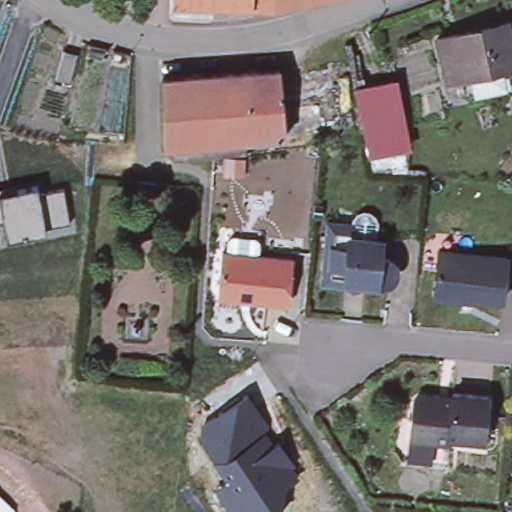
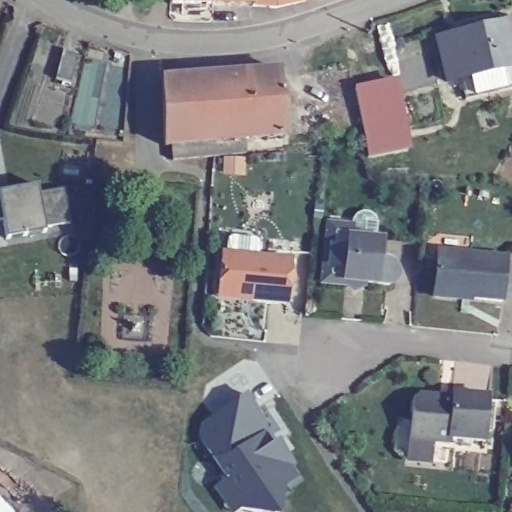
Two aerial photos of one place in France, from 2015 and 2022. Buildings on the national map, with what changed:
unchanged [(252,10),(228,9),(211,8),(188,8),(169,7),(169,0),(252,0),(252,10)]
unchanged [(297,5),(273,11),(252,10),(252,0),(297,0),(297,5)]
unchanged [(297,5),(297,0),(321,0),(297,5)]
unchanged [(505,21),(512,52),(512,65),(446,80),(436,37),(505,21)]
unchanged [(272,145),(271,134),(253,136),(248,71),(278,68),(283,133),(281,133),(282,144),(272,145)]
unchanged [(248,71),(253,136),(243,137),(220,139),(215,73),(248,71)]
unchanged [(215,73),(220,139),(169,143),(161,144),(161,76),(215,73)]
unchanged [(395,80),(410,149),(369,158),(353,90),(395,80)]
unchanged [(220,139),(243,137),(243,152),(211,155),(201,156),(171,158),(169,143),(220,139)]
unchanged [(0,194),(39,186),(40,193),(63,188),(70,220),(43,222),(45,232),(7,237),(3,216),(0,217),(0,194)]
unchanged [(350,291),(343,286),(321,283),(327,228),(350,230),(348,243),(380,246),(377,262),(386,263),(390,266),(393,268),(395,273),(395,277),(394,280),(391,283),(388,286),(383,287),(360,284),(360,287),(350,291)]
unchanged [(222,250),(226,250),(227,237),(231,233),(255,236),(259,240),(257,254),(291,258),(286,302),(250,298),(251,292),(226,289),(217,288),(217,287),(218,278),(222,250)]
unchanged [(437,255),(469,259),(503,262),(499,304),(467,301),(468,297),(460,296),(460,301),(432,298),(435,273),(437,255)]
unchanged [(202,423),(245,394),(264,422),(258,427),(274,451),(272,460),(286,463),(277,512),(261,512),(237,507),(240,490),(233,488),(199,438),(208,432),(202,423)]
unchanged [(421,397),(441,399),(441,401),(453,402),(454,395),(490,398),(485,444),(451,441),(451,446),(411,442),(416,402),(421,397)]

